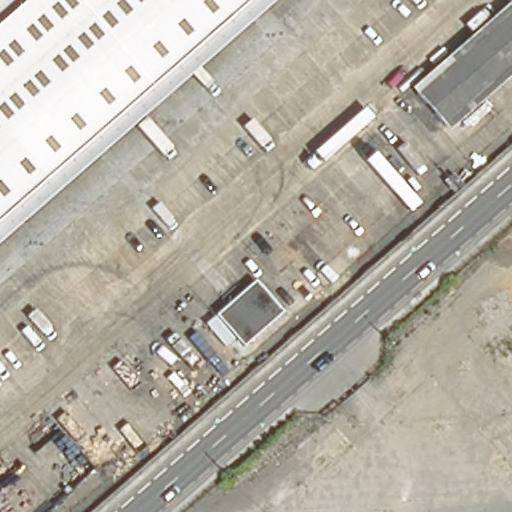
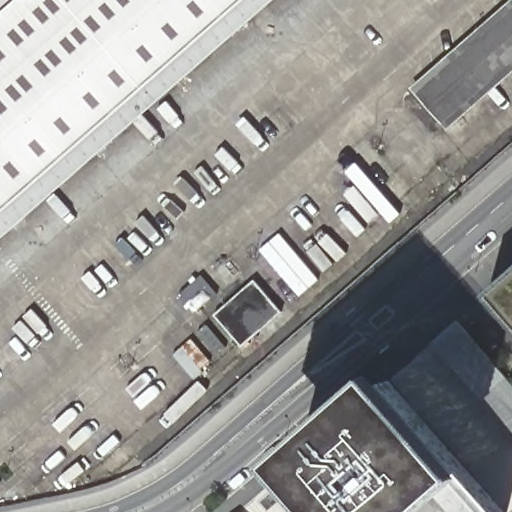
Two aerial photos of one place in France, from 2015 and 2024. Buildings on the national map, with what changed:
unchanged [(235,0),(0,206),(0,0),(235,0)]
unchanged [(512,2),(512,26),(500,12),(512,2)]
unchanged [(512,57),(436,123),(428,114),(419,102),(410,92),(500,12),(512,26),(512,57)]
new [(512,275),(512,316),(492,293),(512,275)]
unchanged [(279,312),(241,345),(213,312),(252,280),(279,312)]
new [(457,322),(512,384),(512,431),(435,341),(457,322)]
new [(298,462),(391,380),(505,512),(343,512),(298,462)]
demolished [(365,440),(350,453),(337,435),(306,460),(296,447),(341,412),(365,440)]

